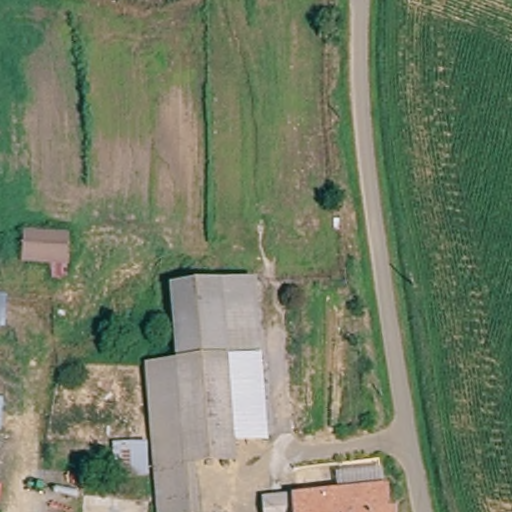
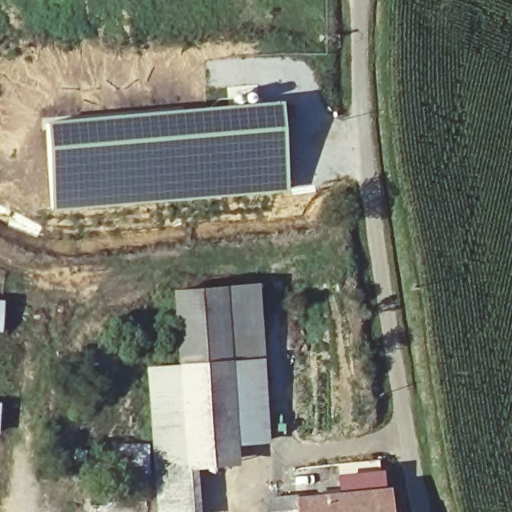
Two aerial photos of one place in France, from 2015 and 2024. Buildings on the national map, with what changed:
new [(182,107),(283,98),(289,191),(51,211),(41,117),(182,107)]
unchanged [(231,431),(232,468),(188,470),(188,512),(150,512),(150,479),(150,443),(146,370),(178,369),(176,291),(262,289),(265,431),(231,431)]
unchanged [(1,332),(0,331),(0,298),(3,298),(1,332)]
unchanged [(0,412),(0,401),(1,402),(0,412)]
unchanged [(114,479),(114,445),(150,443),(150,479),(114,479)]
unchanged [(379,456),(384,486),(335,492),(331,462),(379,456)]
unchanged [(297,496),(335,492),(384,486),(394,485),(398,512),(267,512),(266,500),(297,496)]

